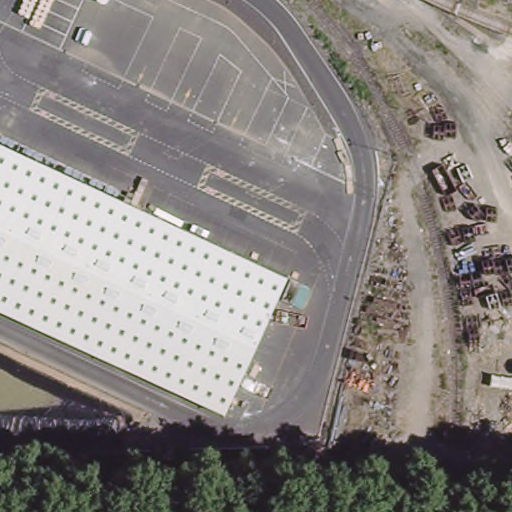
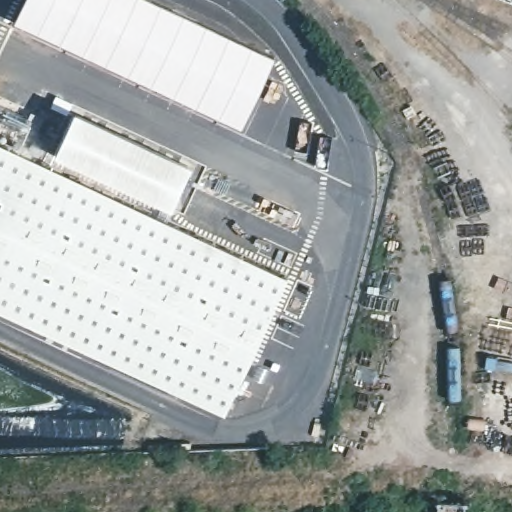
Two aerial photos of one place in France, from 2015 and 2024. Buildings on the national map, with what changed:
new [(274,58),(241,128),(15,22),(25,0),(148,0),(274,58)]
new [(190,164),(170,208),(53,153),(73,111),(190,164)]
unchanged [(0,316),(0,151),(280,280),(217,416),(0,316)]

